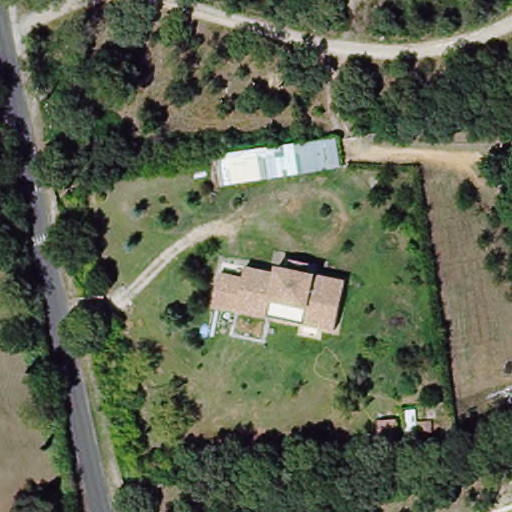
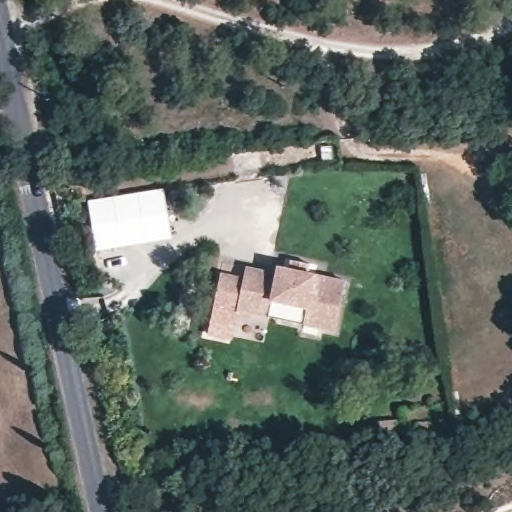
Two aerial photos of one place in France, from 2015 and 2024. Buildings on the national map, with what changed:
unchanged [(236,185),(231,152),(341,135),(347,165),(236,185)]
new [(162,187),(170,237),(103,247),(102,244),(97,245),(87,200),(162,187)]
unchanged [(341,307),(276,294),(274,301),(244,295),(242,305),(218,300),(224,270),(247,274),(249,262),(280,269),(281,262),(293,264),(295,255),(311,258),(309,267),(348,275),(341,307)]
unchanged [(341,307),(338,325),(242,305),(244,295),(274,301),(276,294),(341,307)]
new [(433,432),(417,433),(417,436),(405,438),(403,410),(415,410),(416,421),(432,421),(433,432)]
new [(396,419),(399,448),(379,450),(376,420),(396,419)]

